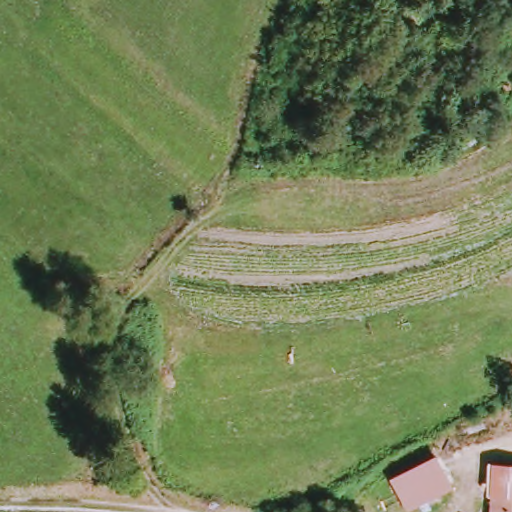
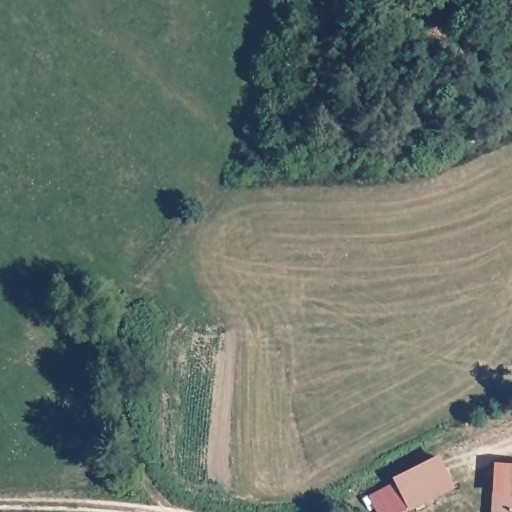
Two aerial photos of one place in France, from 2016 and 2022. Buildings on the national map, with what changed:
unchanged [(453,488),(407,511),(391,478),(437,455),(453,488)]
unchanged [(512,512),(498,512),(500,475),(512,476),(512,512)]

